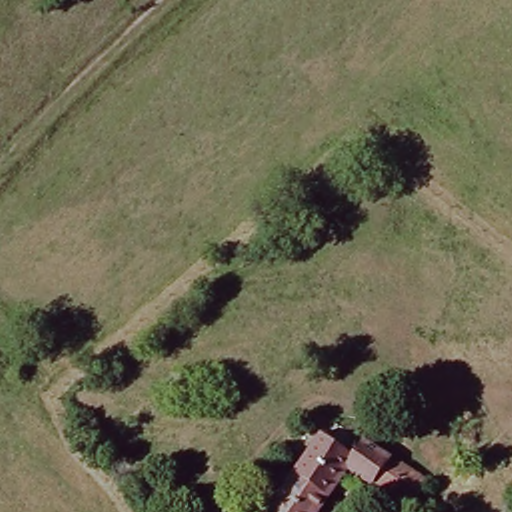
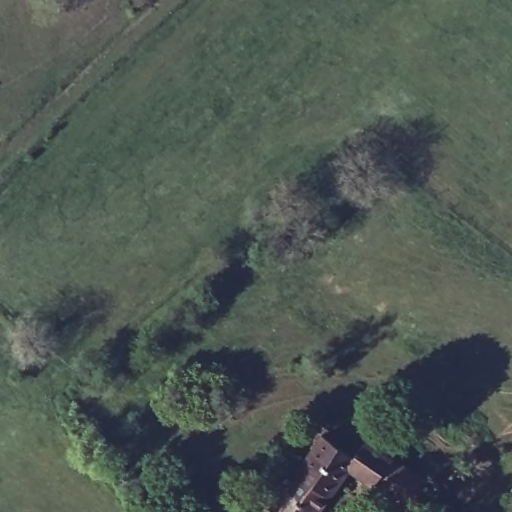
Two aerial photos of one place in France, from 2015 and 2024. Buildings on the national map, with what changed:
unchanged [(364,429),(389,445),(381,459),(390,466),(397,465),(426,486),(409,512),(403,512),(346,477),(320,512),(272,512),(335,423),(357,438),(364,429)]

